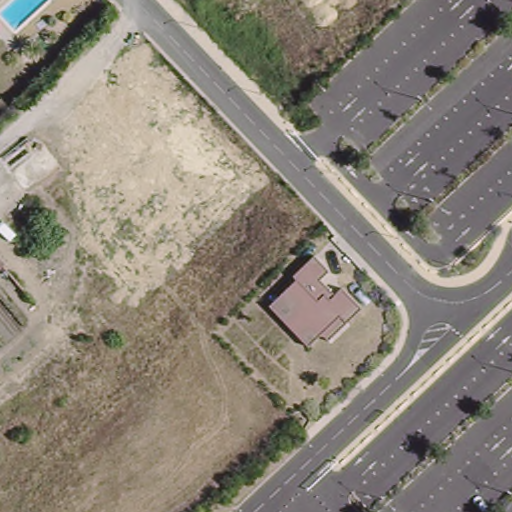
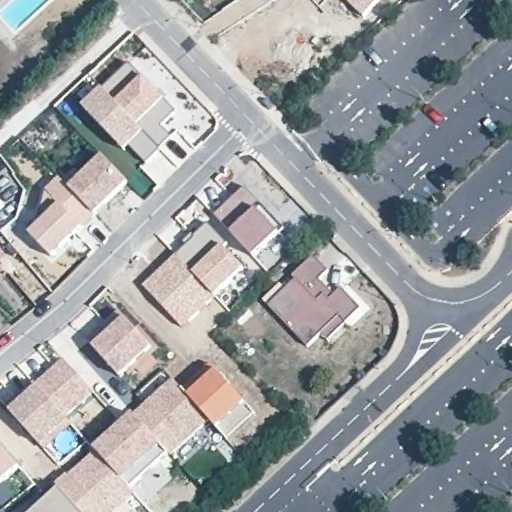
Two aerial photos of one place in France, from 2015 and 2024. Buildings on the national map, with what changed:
new [(344,0),(379,0),(362,17),(344,0)]
new [(164,125),(172,134),(155,155),(158,159),(153,162),(152,161),(147,165),(129,147),(124,152),(82,107),(102,88),(130,66),(142,77),(177,112),(164,125)]
new [(102,155),(129,182),(95,216),(67,186),(102,155)]
new [(59,206),(45,191),(59,177),(67,186),(95,216),(52,257),(29,235),(59,206)]
new [(245,187),(281,232),(253,259),(214,214),(245,187)]
new [(187,246),(185,243),(194,235),(195,237),(209,225),(228,246),(225,248),(222,245),(192,271),(179,256),(187,246)]
new [(222,245),(244,268),(214,297),(192,271),(222,245)]
new [(177,254),(179,256),(192,271),(214,297),(182,329),(142,285),(177,254)]
unchanged [(333,268),(322,280),(332,290),(341,282),(364,307),(330,347),(320,337),(311,344),(270,304),(295,280),(293,275),(315,255),(333,268)]
new [(0,271),(0,264),(4,268),(0,271)]
new [(142,375),(134,365),(119,378),(92,346),(125,317),(154,347),(149,353),(157,362),(142,375)]
new [(64,360),(92,392),(66,417),(71,423),(42,448),(9,411),(64,360)]
new [(215,369),(246,402),(216,430),(209,423),(185,395),(215,369)]
new [(172,379),(185,395),(209,423),(169,455),(161,447),(132,413),(172,379)]
new [(132,413),(161,447),(124,481),(92,450),(132,413)]
new [(0,485),(0,445),(20,467),(0,485)]
new [(92,450),(124,481),(134,493),(114,512),(80,512),(59,489),(55,485),(92,450)]
new [(59,489),(80,512),(34,512),(59,489)]

